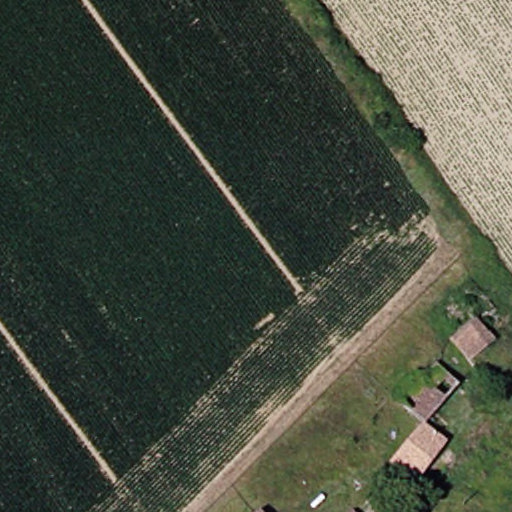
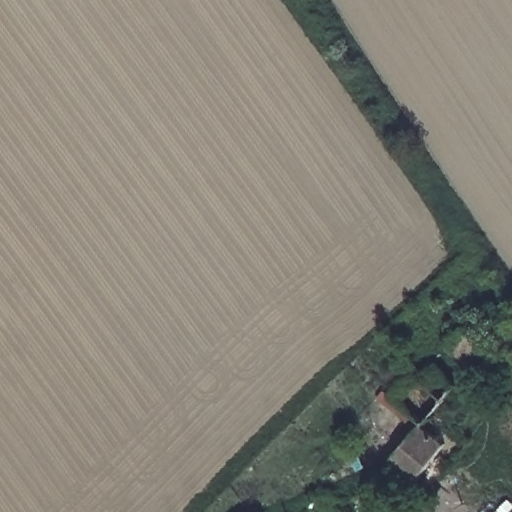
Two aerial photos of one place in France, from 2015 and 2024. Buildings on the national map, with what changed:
unchanged [(458,306),(488,344),(464,364),(434,326),(458,306)]
unchanged [(420,427),(441,447),(408,485),(381,463),(414,426),(389,399),(412,378),(440,404),(420,427)]
unchanged [(348,509),(351,512),(344,512),(348,509)]

